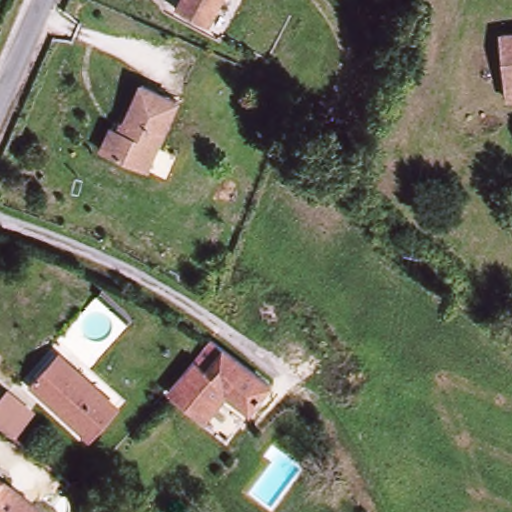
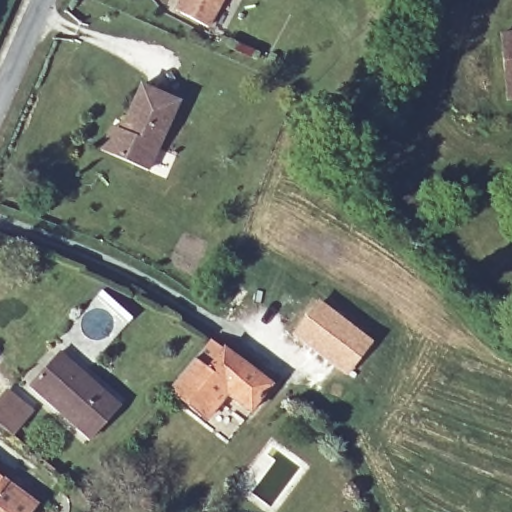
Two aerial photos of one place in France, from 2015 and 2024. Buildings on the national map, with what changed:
unchanged [(209,34),(182,20),(192,0),(225,0),(209,34)]
unchanged [(510,103),(501,38),(512,36),(512,102),(510,103)]
unchanged [(102,152),(117,116),(132,83),(169,99),(139,168),(102,152)]
new [(321,304),(371,343),(347,373),(298,335),(321,304)]
unchanged [(169,390),(211,342),(272,387),(252,412),(227,395),(207,422),(173,394),(169,390)]
unchanged [(93,443),(32,387),(59,356),(121,411),(93,443)]
unchanged [(12,437),(0,427),(0,396),(6,388),(34,409),(12,437)]
unchanged [(22,512),(0,512),(0,474),(32,499),(22,512)]

